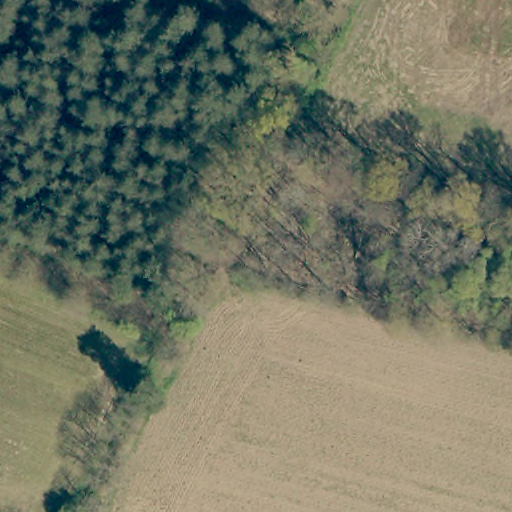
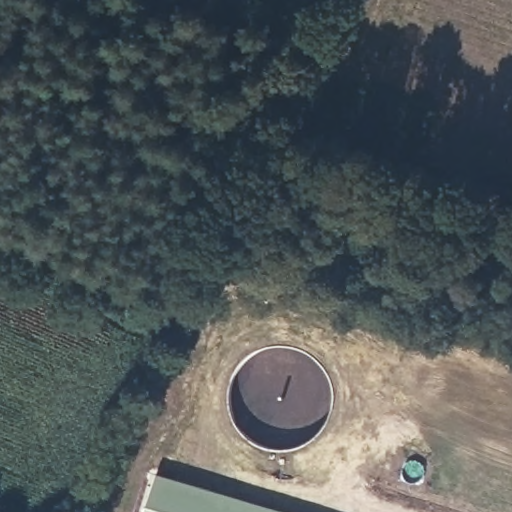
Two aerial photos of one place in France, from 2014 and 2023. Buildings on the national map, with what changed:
new [(157,473),(287,512),(145,512),(157,473)]

